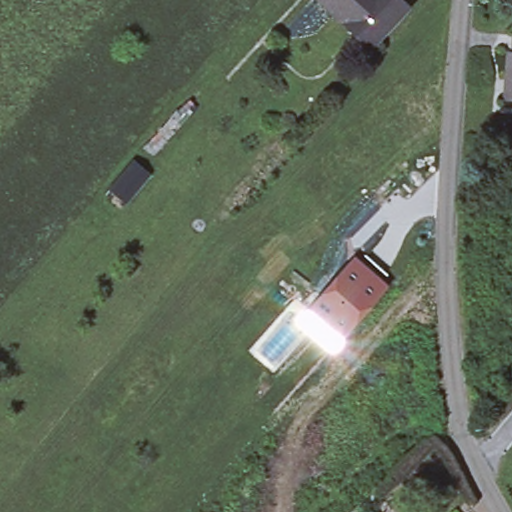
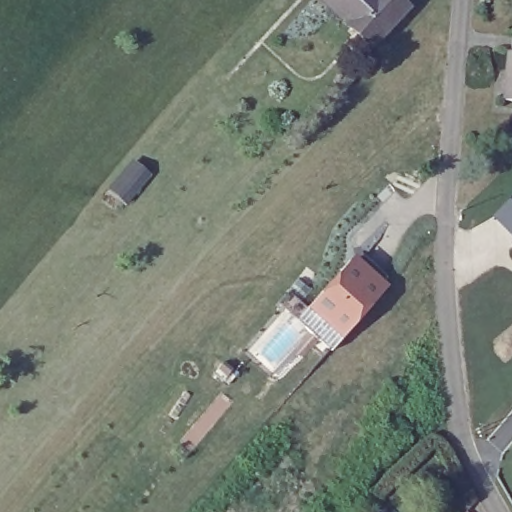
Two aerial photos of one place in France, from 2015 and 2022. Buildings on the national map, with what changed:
unchanged [(375,41),(360,27),(355,33),(320,0),(398,0),(406,8),(375,41)]
unchanged [(509,48),(512,48),(512,96),(505,95),(509,48)]
unchanged [(150,174),(124,204),(109,190),(135,160),(150,174)]
new [(512,195),(512,236),(490,217),(512,195)]
new [(512,239),(512,243),(510,241),(512,239)]
unchanged [(307,308),(349,262),(352,258),(386,289),(384,292),(383,293),(342,339),(307,308)]
unchanged [(274,371),(252,352),(287,312),(309,330),(274,371)]

